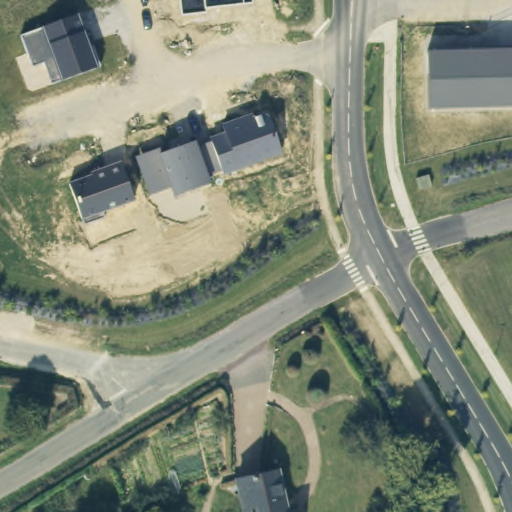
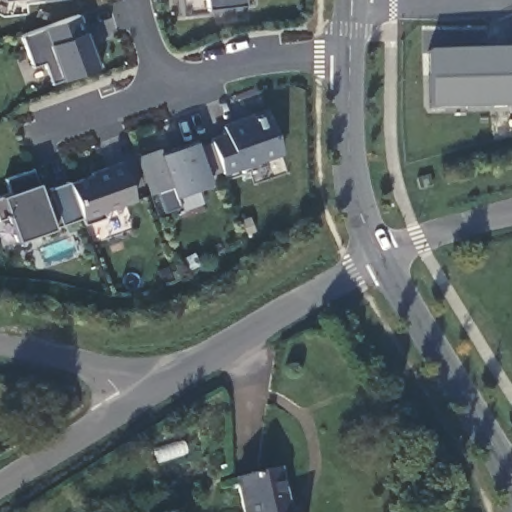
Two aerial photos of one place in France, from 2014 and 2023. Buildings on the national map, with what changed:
new [(4,0),(16,0),(4,1),(4,0)]
unchanged [(205,10),(205,13),(182,16),(179,0),(252,0),(253,4),(205,10)]
unchanged [(44,28),(79,15),(98,67),(62,80),(51,84),(45,64),(33,68),(21,36),(44,28)]
unchanged [(512,49),(512,107),(431,110),(429,52),(512,49)]
unchanged [(159,149),(160,155),(195,141),(198,147),(212,141),(209,135),(227,133),(223,124),(263,112),(270,116),(283,155),(239,171),(224,176),(222,170),(207,174),(211,184),(174,196),(171,187),(150,196),(136,156),(159,149)]
unchanged [(93,175),(91,172),(120,162),(134,200),(102,212),(104,218),(84,224),(82,218),(70,184),(93,175)]
new [(82,218),(54,228),(18,241),(10,218),(0,220),(0,197),(2,197),(11,194),(6,181),(32,170),(39,184),(42,193),(49,190),(69,182),(70,184),(82,218)]
unchanged [(277,472),(284,508),(293,506),(294,512),(242,512),(236,480),(277,472)]

